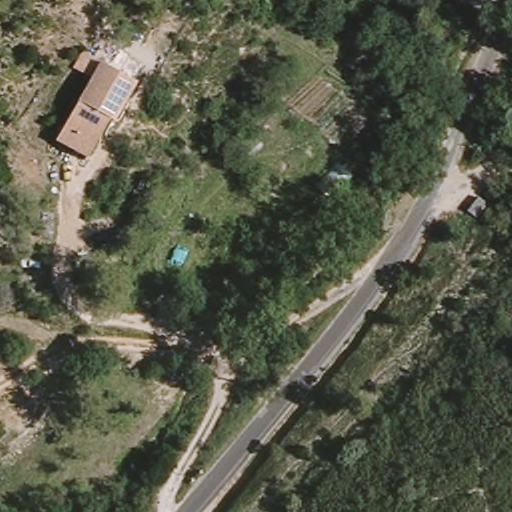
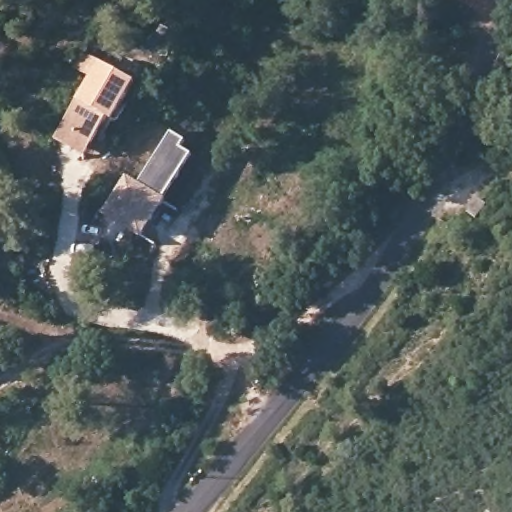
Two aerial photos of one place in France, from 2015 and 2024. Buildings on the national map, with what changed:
unchanged [(136,85),(114,123),(109,120),(85,160),(54,143),(100,65),(136,85)]
new [(170,130),(184,139),(179,146),(191,153),(164,199),(137,181),(170,130)]
new [(124,173),(137,181),(164,199),(140,239),(99,215),(124,173)]

